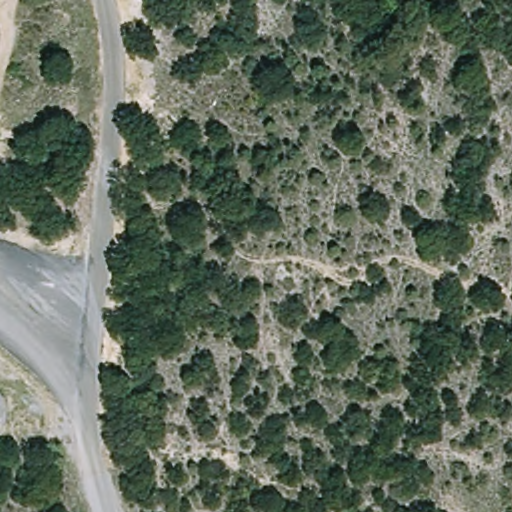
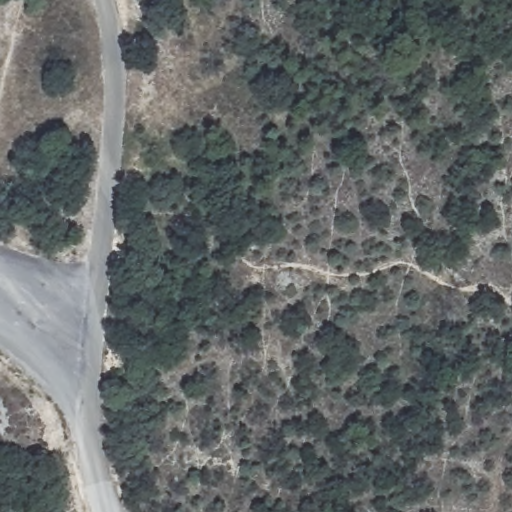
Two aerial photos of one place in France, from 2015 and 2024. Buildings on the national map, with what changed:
[]

